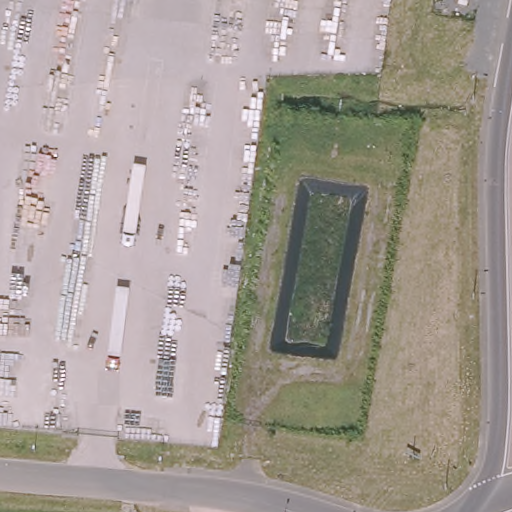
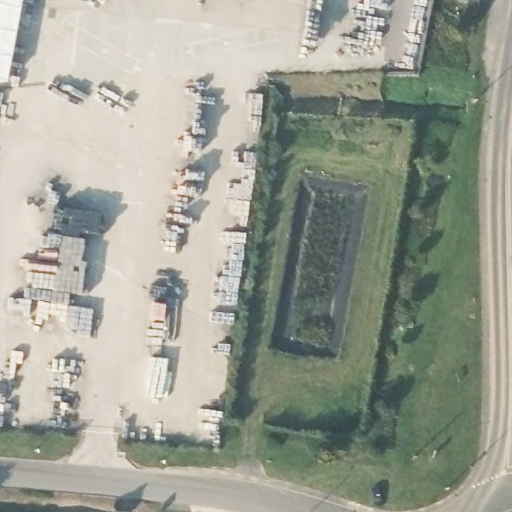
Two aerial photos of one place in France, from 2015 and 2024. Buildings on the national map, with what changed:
new [(19,77),(17,91),(5,89),(5,83),(0,82),(0,0),(21,0),(7,75),(19,77)]

